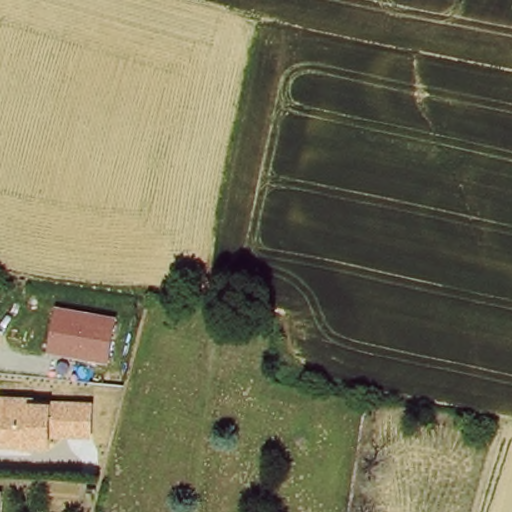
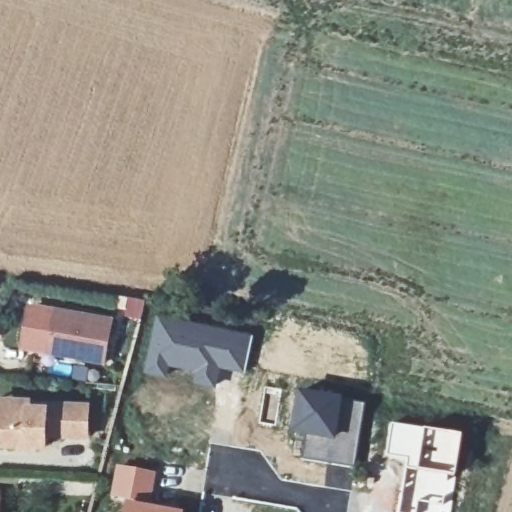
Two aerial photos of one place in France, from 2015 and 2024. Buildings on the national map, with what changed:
new [(118,294),(145,299),(141,319),(123,315),(125,311),(115,309),(118,294)]
unchanged [(115,317),(105,364),(45,352),(53,306),(115,317)]
new [(156,308),(200,321),(254,332),(245,373),(221,369),(216,390),(188,384),(191,372),(171,367),(168,380),(137,372),(156,308)]
demolished [(142,325),(155,329),(145,364),(140,382),(128,378),(142,325)]
new [(293,388),(364,400),(353,466),(298,457),(302,438),(287,435),(293,388)]
unchanged [(92,400),(92,438),(48,437),(48,449),(0,448),(0,396),(92,400)]
new [(460,433),(450,512),(396,512),(405,461),(385,457),(390,422),(460,433)]
new [(114,464),(155,471),(150,505),(122,501),(108,498),(114,464)]
new [(150,505),(182,511),(182,512),(120,512),(122,501),(150,505)]

